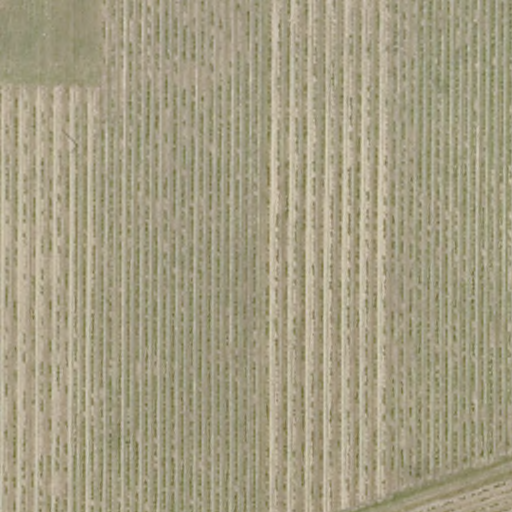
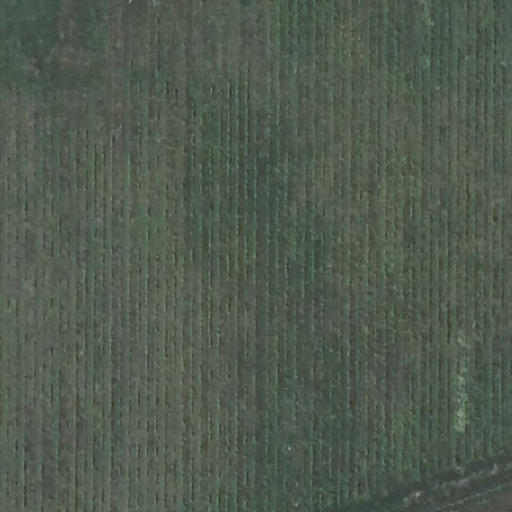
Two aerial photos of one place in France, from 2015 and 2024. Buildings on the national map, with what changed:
[]

